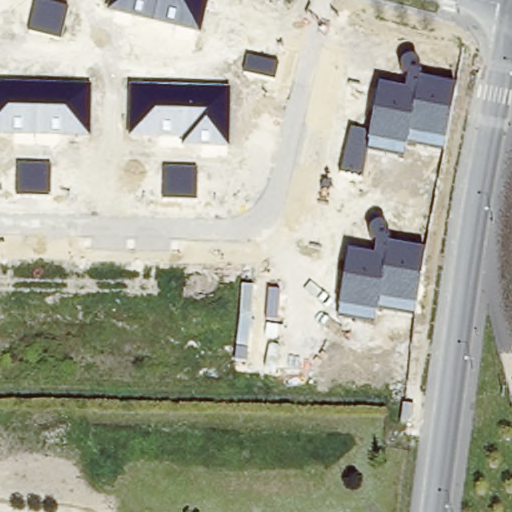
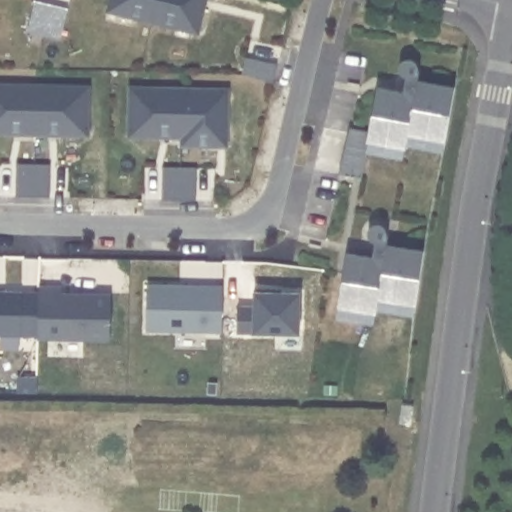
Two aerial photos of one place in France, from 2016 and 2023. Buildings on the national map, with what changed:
unchanged [(111,0),(208,0),(200,36),(107,15),(111,0)]
demolished [(21,44),(0,41),(0,1),(27,5),(21,44)]
unchanged [(67,8),(62,39),(30,33),(36,1),(67,8)]
unchanged [(350,130),(368,133),(377,85),(402,88),(405,77),(401,74),(398,69),(398,62),(402,56),(407,54),(411,54),(417,58),(418,65),(418,72),(417,78),(455,85),(442,150),(405,142),(402,159),(367,152),(362,181),(341,176),(350,130)]
new [(247,57),(278,65),(275,82),(243,74),(247,57)]
unchanged [(91,137),(0,135),(0,85),(91,88),(91,137)]
unchanged [(131,87),(230,91),(231,148),(182,147),(182,140),(130,138),(131,87)]
unchanged [(17,161),(50,163),(50,197),(17,195),(17,161)]
unchanged [(197,167),(197,201),(163,199),(163,166),(197,167)]
unchanged [(347,253),(372,256),(374,245),(370,242),(369,239),(368,234),(370,228),(375,224),(378,224),(382,226),(386,228),(387,233),(385,243),(425,250),(415,318),(375,313),(372,326),(337,320),(347,253)]
new [(224,333),(148,331),(148,283),(223,284),(224,333)]
new [(112,342),(39,339),(40,286),(62,287),(62,291),(112,292),(112,342)]
new [(255,307),(255,290),(272,290),(272,292),(301,293),(300,335),(238,333),(238,306),(255,307)]
new [(38,337),(0,336),(0,291),(40,292),(38,337)]
new [(403,404),(413,406),(410,424),(400,423),(403,404)]

